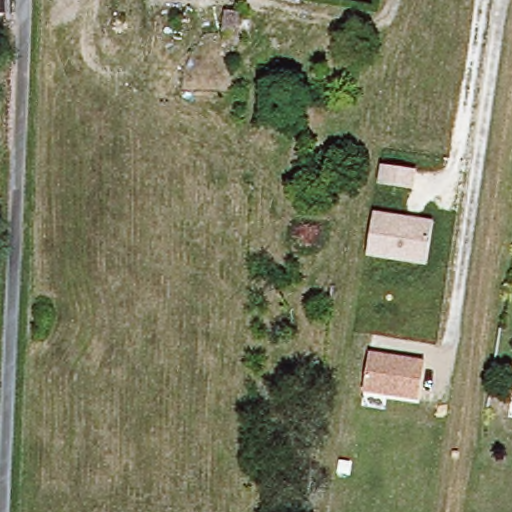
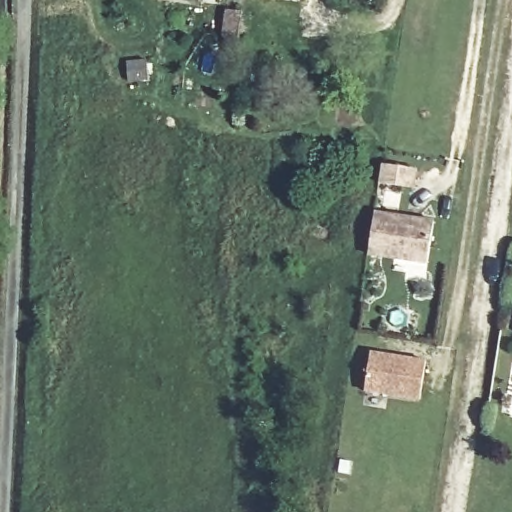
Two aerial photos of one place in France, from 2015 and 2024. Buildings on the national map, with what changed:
unchanged [(224,45),(225,38),(227,11),(242,12),(240,40),(239,47),(224,45)]
unchanged [(381,162),(418,167),(415,190),(377,184),(381,162)]
unchanged [(372,210),(433,219),(428,265),(366,256),(372,210)]
unchanged [(363,394),(370,350),(426,358),(420,402),(363,394)]

